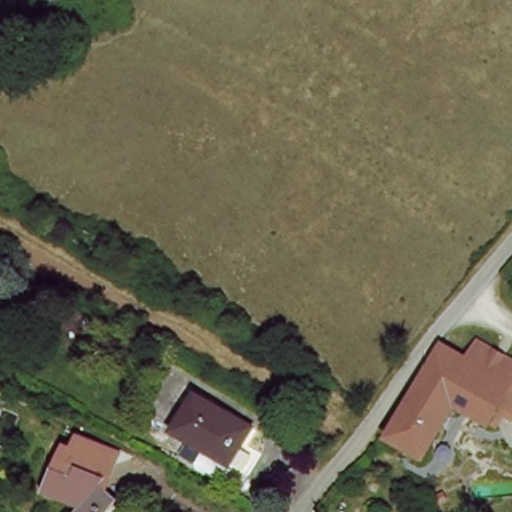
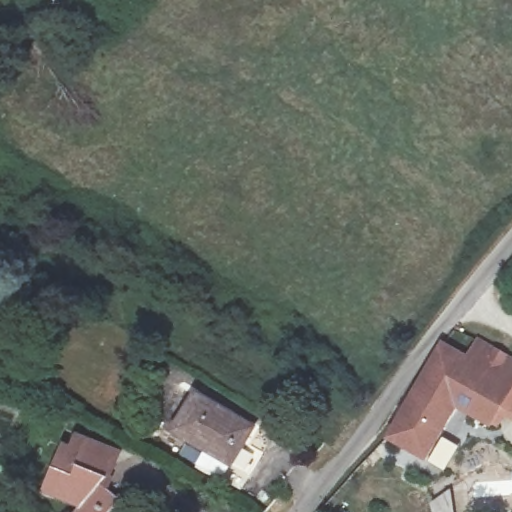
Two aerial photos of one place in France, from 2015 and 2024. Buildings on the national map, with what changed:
unchanged [(470,352),(478,336),(512,355),(512,390),(492,424),(460,406),(430,459),(387,436),(443,339),(470,352)]
unchanged [(512,423),(505,432),(492,424),(512,390),(512,423)]
unchanged [(234,463),(176,431),(196,395),(253,427),(234,463)]
unchanged [(85,506),(90,492),(49,490),(63,442),(116,456),(112,470),(100,467),(97,478),(112,486),(103,512),(98,512),(85,506)]

